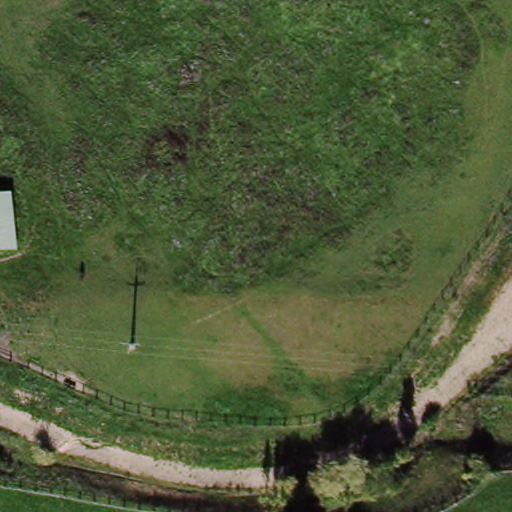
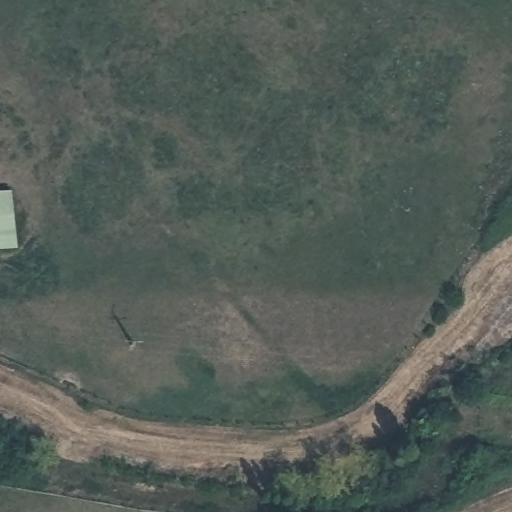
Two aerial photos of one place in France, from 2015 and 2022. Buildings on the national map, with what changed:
unchanged [(15,250),(0,251),(0,193),(8,193),(15,250)]

